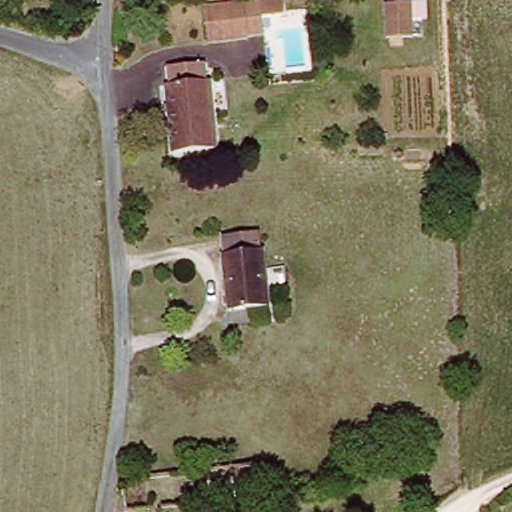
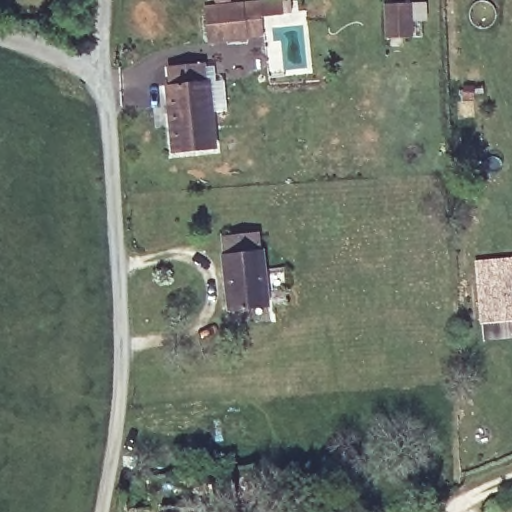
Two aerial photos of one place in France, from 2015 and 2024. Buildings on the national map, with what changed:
unchanged [(385,4),(415,3),(417,38),(385,37),(385,4)]
unchanged [(199,9),(217,7),(260,7),(260,44),(217,44),(200,45),(199,9)]
unchanged [(207,155),(167,157),(162,61),(200,62),(207,155)]
unchanged [(221,314),(217,238),(255,237),(257,313),(221,314)]
new [(475,261),(512,258),(512,320),(478,323),(475,261)]

